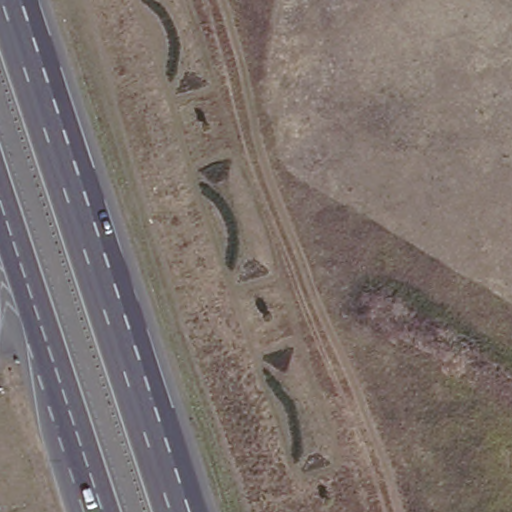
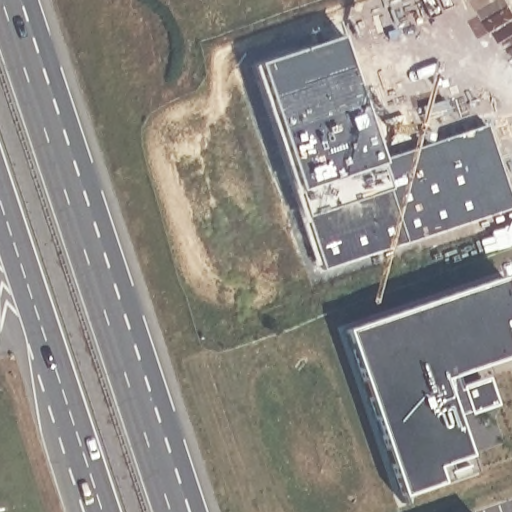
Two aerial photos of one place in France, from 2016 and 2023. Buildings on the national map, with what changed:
new [(335,37),(378,163),(483,125),(511,209),(321,274),(250,67),(335,37)]
new [(512,283),(512,355),(460,373),(481,451),(453,460),(456,479),(410,494),(349,327),(510,275),(512,283)]

